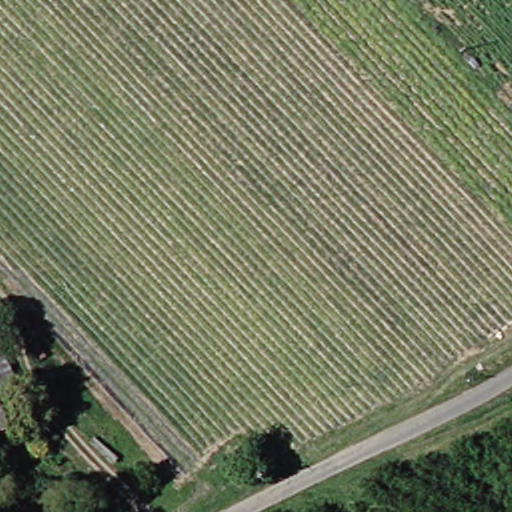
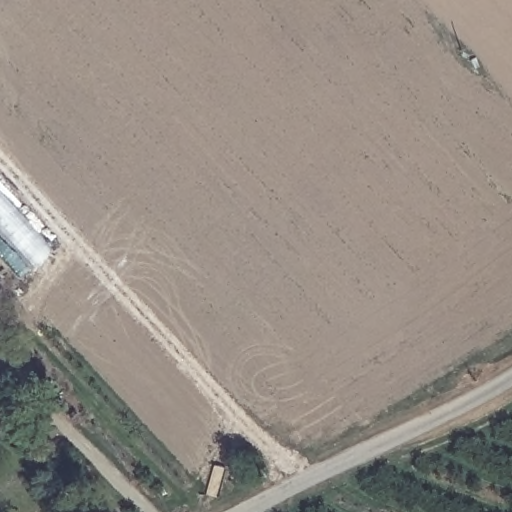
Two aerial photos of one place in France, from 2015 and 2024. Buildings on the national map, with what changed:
new [(0,233),(0,194),(51,251),(34,269),(0,233)]
unchanged [(0,363),(0,324),(15,359),(0,363)]
unchanged [(0,378),(0,370),(2,377),(0,378)]
unchanged [(0,435),(0,390),(16,427),(0,435)]

